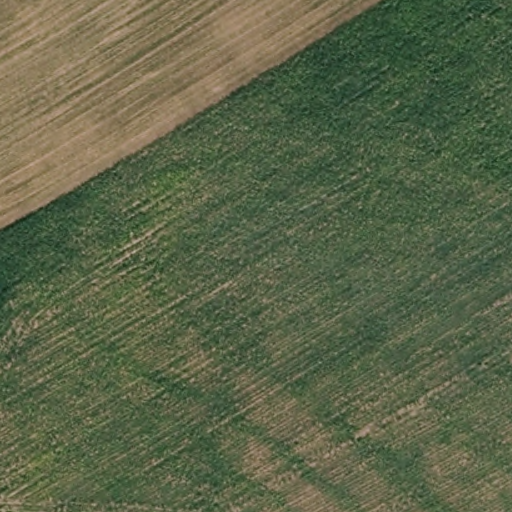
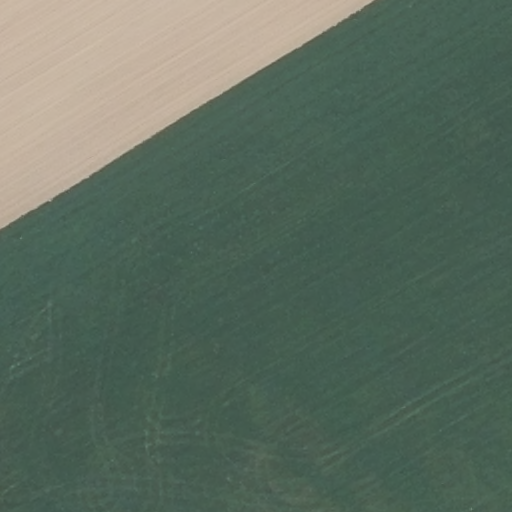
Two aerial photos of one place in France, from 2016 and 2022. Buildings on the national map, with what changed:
[]

